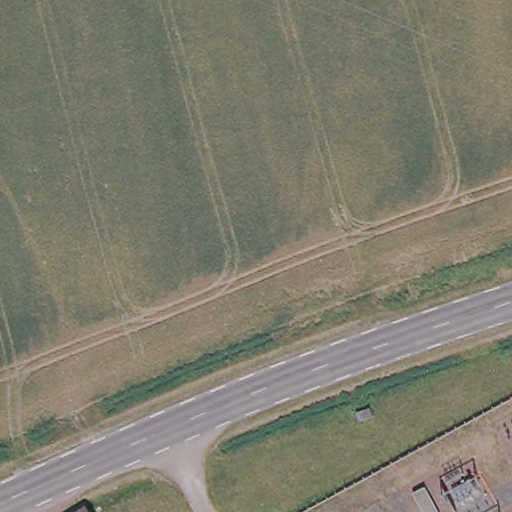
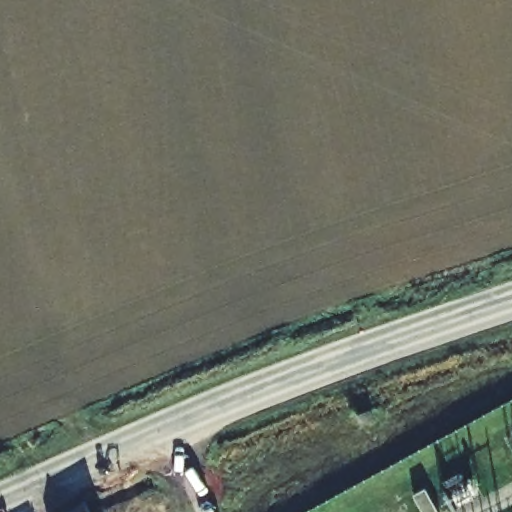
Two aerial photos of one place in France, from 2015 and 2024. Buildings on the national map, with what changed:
unchanged [(370,418),(356,421),(355,412),(369,409),(370,418)]
unchanged [(86,512),(85,512),(86,511),(86,512)]

